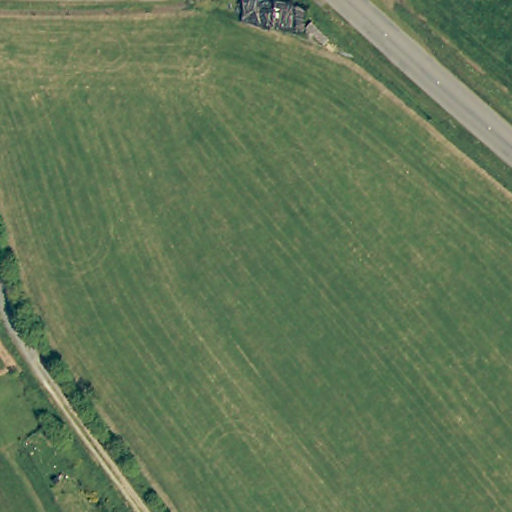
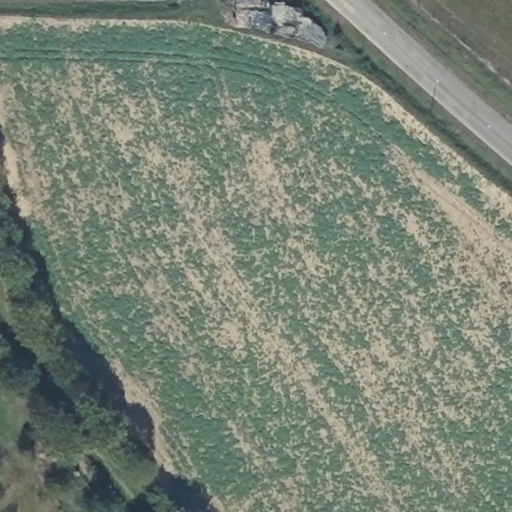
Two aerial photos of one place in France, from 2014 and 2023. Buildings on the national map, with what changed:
[]

